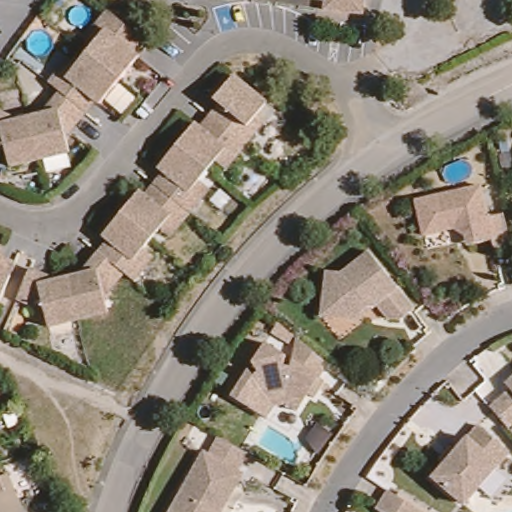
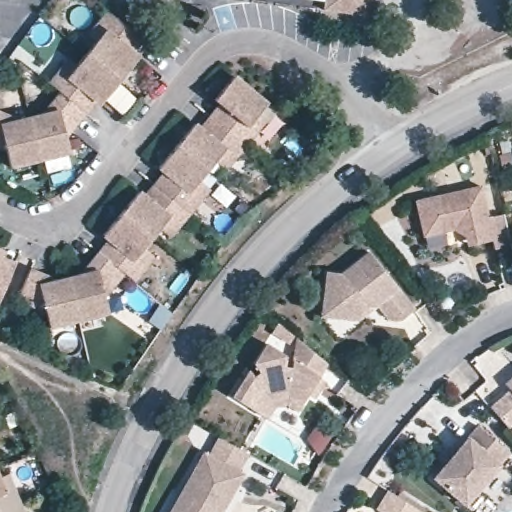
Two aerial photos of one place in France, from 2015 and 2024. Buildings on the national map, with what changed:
unchanged [(365,17),(325,12),(326,0),(367,0),(365,17)]
unchanged [(46,112),(58,95),(49,85),(87,35),(107,14),(146,41),(98,107),(68,145),(70,159),(11,175),(4,155),(0,154),(0,110),(15,115),(46,112)]
unchanged [(52,275),(85,269),(104,245),(101,240),(140,189),(146,196),(161,180),(156,172),(196,120),(203,128),(215,112),(211,106),(235,76),(271,105),(261,117),(270,125),(176,240),(163,227),(146,249),(163,256),(143,287),(126,274),(113,295),(118,312),(49,330),(43,315),(16,310),(30,270),(52,275)]
unchanged [(493,249),(492,241),(474,245),(449,231),(423,237),(414,202),(479,187),(487,217),(501,214),(509,245),(493,249)]
unchanged [(7,259),(21,265),(1,307),(0,307),(0,246),(10,250),(7,259)]
unchanged [(328,310),(329,276),(345,277),(373,256),(419,313),(404,325),(390,325),(384,315),(366,313),(362,324),(338,322),(327,321),(328,310)]
unchanged [(231,397),(248,372),(254,378),(259,371),(253,367),(271,345),(284,353),(288,356),(296,345),(303,350),(329,372),(298,409),(292,416),(284,410),(274,406),(263,422),(254,415),(231,397)]
unchanged [(508,383),(512,379),(512,387),(508,383)]
unchanged [(511,426),(493,405),(512,388),(512,425),(511,426)]
unchanged [(504,457),(462,510),(431,483),(439,471),(434,467),(446,449),(453,454),(471,430),(504,457)]
unchanged [(0,448),(0,436),(4,447),(0,448)]
unchanged [(211,459),(220,442),(251,459),(233,491),(223,510),(222,512),(174,512),(204,455),(211,459)]
unchanged [(13,480),(18,494),(25,512),(0,512),(0,467),(6,483),(13,480)]
unchanged [(403,512),(377,512),(385,500),(403,512)]

